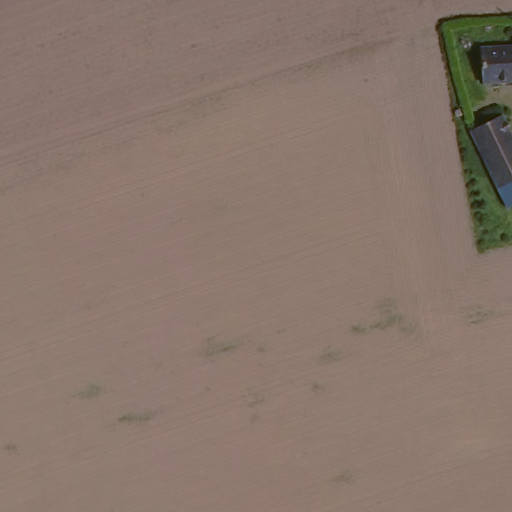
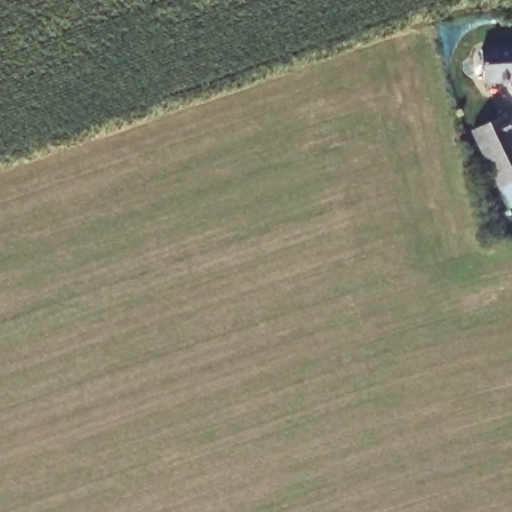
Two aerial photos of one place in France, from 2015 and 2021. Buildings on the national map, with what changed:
unchanged [(483,48),(512,46),(512,85),(486,86),(483,48)]
unchanged [(505,120),(512,135),(512,203),(508,204),(504,206),(495,184),(471,133),(481,129),(505,120)]

